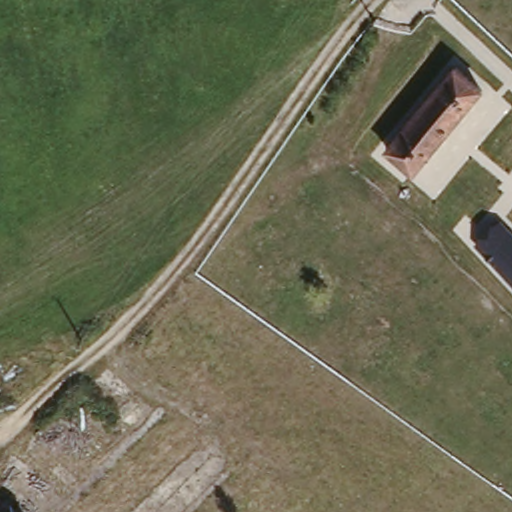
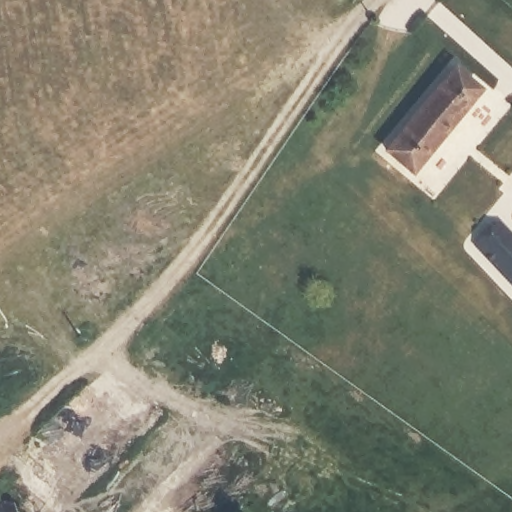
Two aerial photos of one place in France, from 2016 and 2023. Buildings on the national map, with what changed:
unchanged [(456,68),(483,91),(412,173),(387,150),(456,68)]
unchanged [(501,228),(512,241),(512,285),(477,247),(501,228)]
unchanged [(6,510),(14,503),(23,512),(0,512),(0,505),(6,510)]

